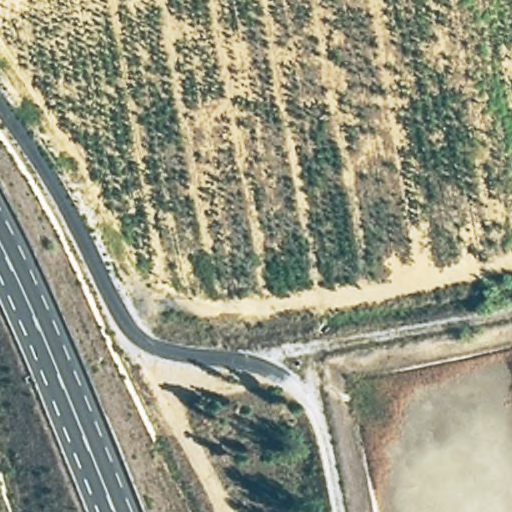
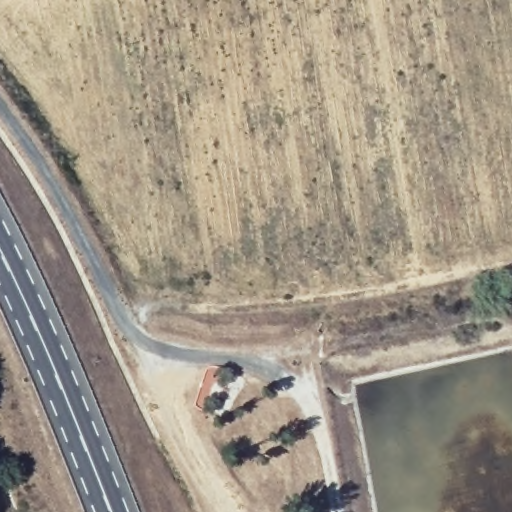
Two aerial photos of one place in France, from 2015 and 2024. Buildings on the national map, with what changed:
[]

